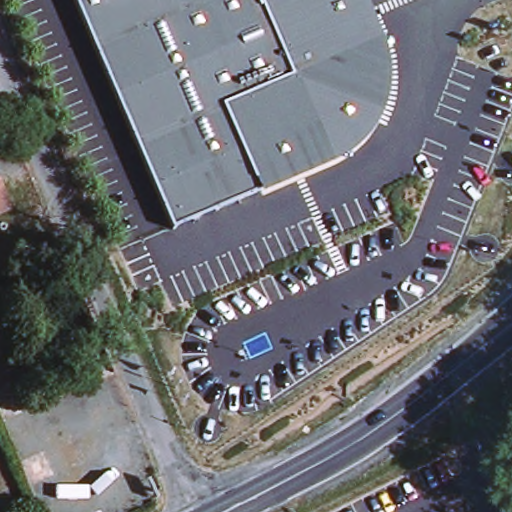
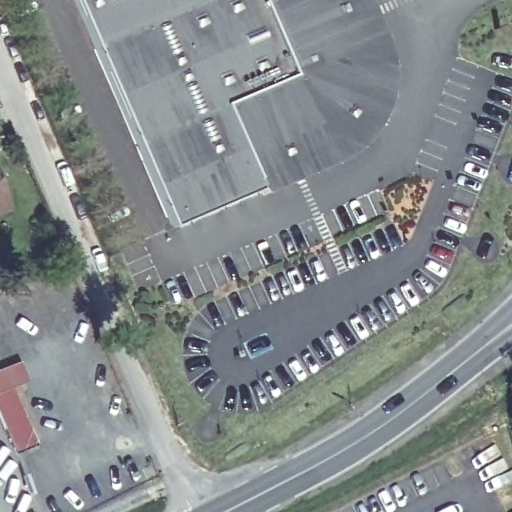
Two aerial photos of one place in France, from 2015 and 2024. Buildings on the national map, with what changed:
unchanged [(77,0),(367,0),(384,42),(392,63),(392,85),(386,110),(376,130),(358,152),(337,165),(264,197),(262,191),(175,231),(77,0)]
unchanged [(0,215),(0,188),(4,199),(9,211),(0,215)]
new [(14,452),(4,427),(0,417),(0,368),(18,362),(25,381),(8,388),(15,404),(22,420),(27,432),(32,443),(26,446),(14,452)]

